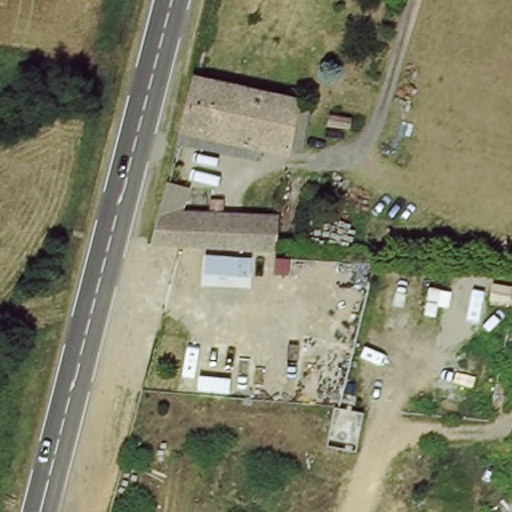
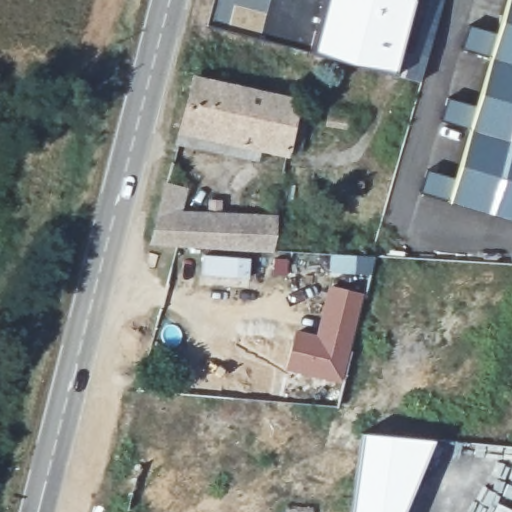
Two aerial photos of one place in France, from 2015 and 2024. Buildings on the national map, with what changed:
new [(271,0),(263,34),(209,21),(214,0),(271,0)]
new [(413,0),(396,73),(311,50),(324,0),(413,0)]
new [(421,192),(426,171),(455,179),(471,126),(441,120),(448,99),(478,105),(492,55),(463,48),(470,25),(498,32),(508,0),(512,0),(512,220),(448,201),(421,192)]
new [(409,50),(415,51),(420,40),(428,42),(420,81),(401,77),(409,50)]
unchanged [(185,130),(199,75),(304,99),(294,155),(185,130)]
unchanged [(159,214),(277,225),(272,250),(152,242),(159,214)]
new [(286,370),(296,330),(317,335),(328,285),(364,295),(342,383),(286,370)]
new [(374,400),(370,419),(362,416),(355,453),(326,449),(334,407),(339,409),(342,393),(374,400)]
new [(361,431),(433,439),(428,456),(404,512),(349,512),(361,431)]

